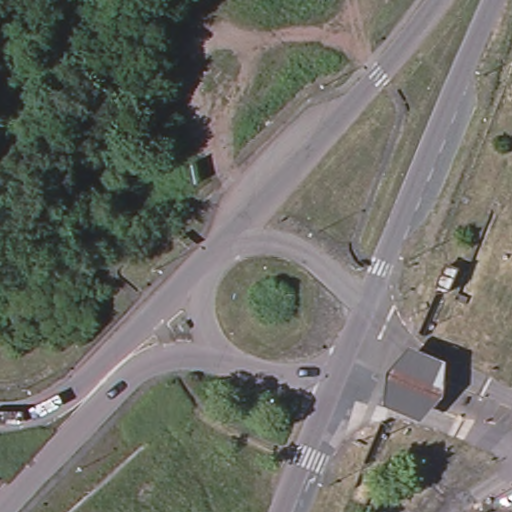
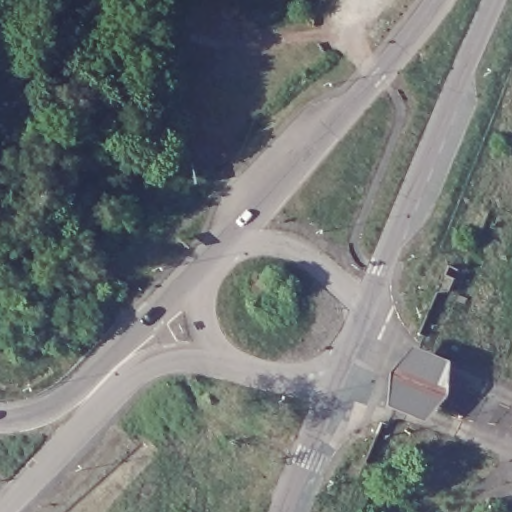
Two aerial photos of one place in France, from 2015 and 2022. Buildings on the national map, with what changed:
unchanged [(387,373),(410,346),(447,364),(445,398),(440,406),(426,427),(386,407),(387,393),(387,373)]

